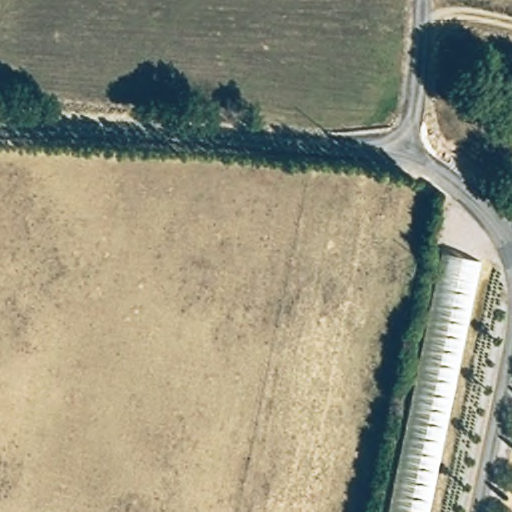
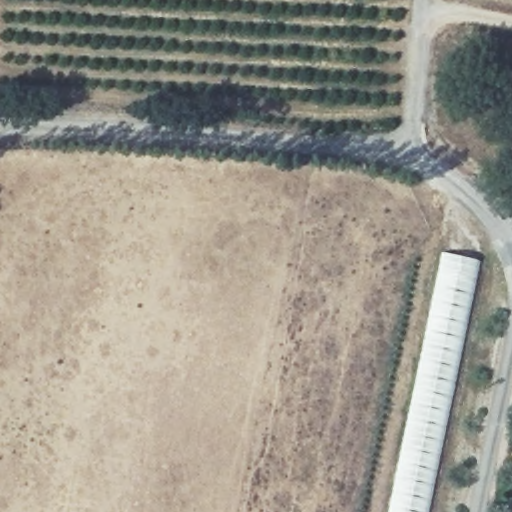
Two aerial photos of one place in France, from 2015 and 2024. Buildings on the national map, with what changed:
unchanged [(480,261),(428,512),(391,512),(443,255),(480,261)]

